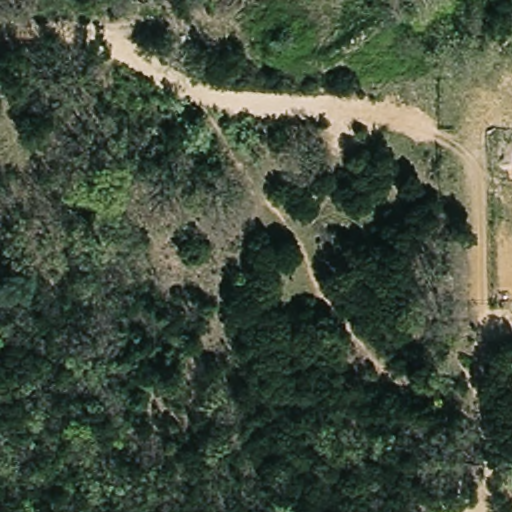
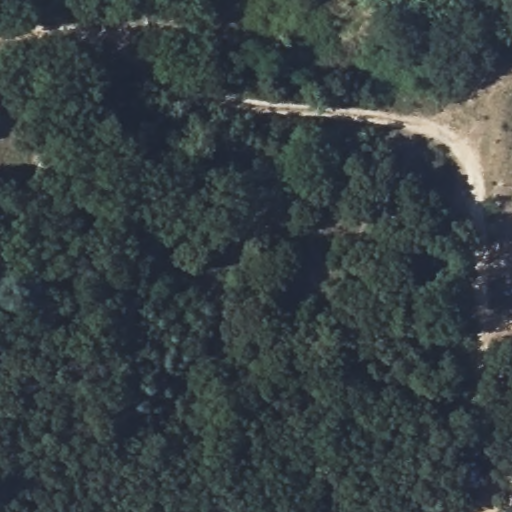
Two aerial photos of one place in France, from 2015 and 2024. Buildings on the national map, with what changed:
unchanged [(433,512),(434,504),(455,506),(455,512),(433,512)]

